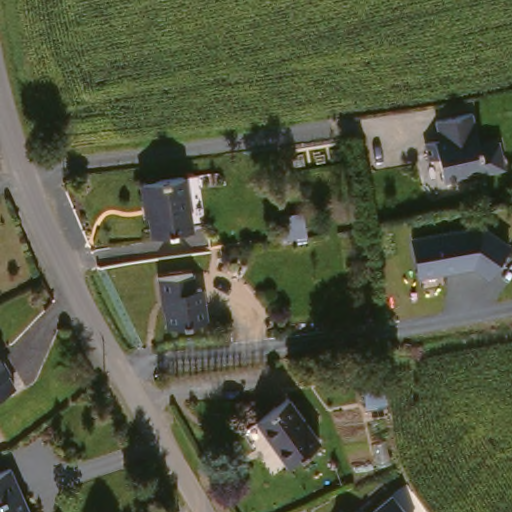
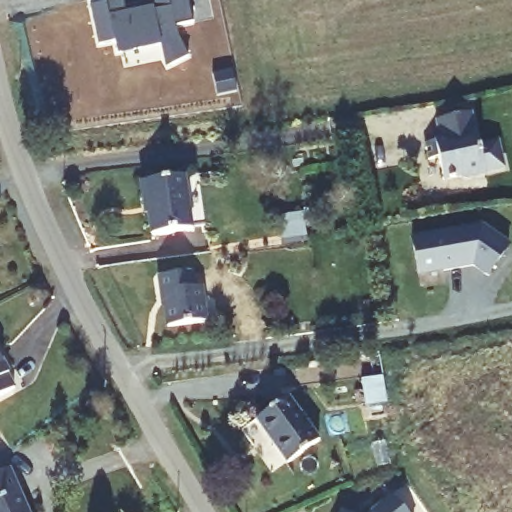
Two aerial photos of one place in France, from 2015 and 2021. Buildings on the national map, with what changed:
new [(125,6),(150,0),(190,0),(194,19),(175,22),(177,32),(187,54),(170,63),(160,42),(116,52),(114,40),(98,43),(90,3),(106,0),(124,0),(125,6)]
unchanged [(490,174),(471,178),(466,175),(450,179),(445,157),(435,159),(431,142),(446,139),(442,120),(478,113),(490,174)]
unchanged [(190,225),(191,228),(149,232),(145,199),(141,199),(140,181),(184,175),(186,195),(199,194),(204,224),(190,225)]
unchanged [(494,275),(474,267),(418,277),(411,237),(483,225),(510,246),(494,275)]
unchanged [(187,275),(190,291),(197,290),(201,324),(165,329),(160,296),(156,297),(154,280),(187,275)]
unchanged [(0,396),(0,366),(12,391),(0,396)]
new [(387,375),(390,400),(370,403),(366,377),(387,375)]
unchanged [(257,420),(287,400),(319,444),(289,463),(257,420)]
unchanged [(9,466),(30,512),(0,512),(0,470),(9,466)]
unchanged [(406,512),(375,512),(392,495),(406,512)]
unchanged [(347,512),(340,512),(341,510),(347,512)]

